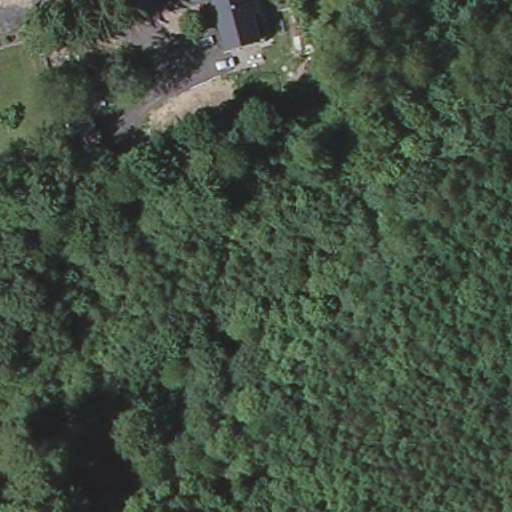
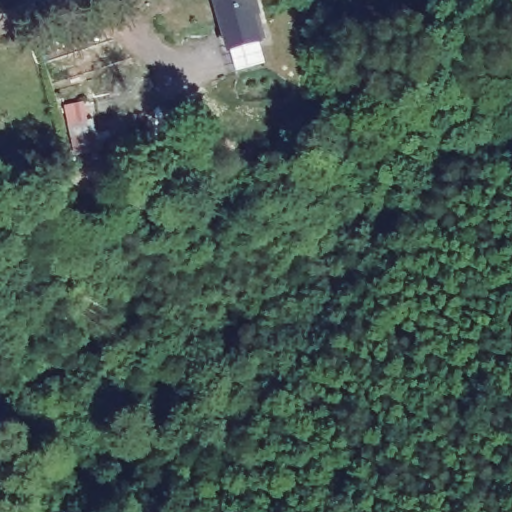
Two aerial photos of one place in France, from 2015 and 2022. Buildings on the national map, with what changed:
unchanged [(216,0),(254,0),(259,15),(250,18),(257,41),(230,49),(216,0)]

